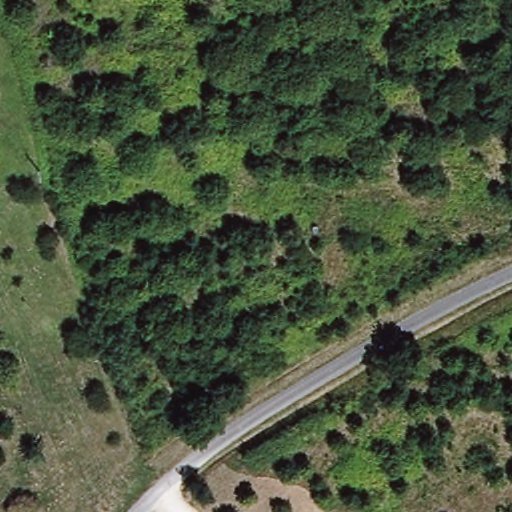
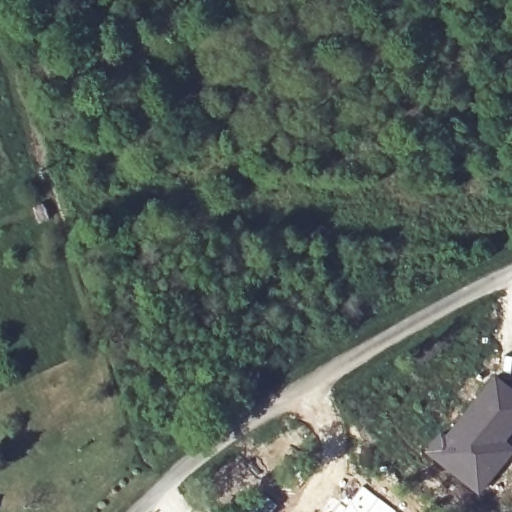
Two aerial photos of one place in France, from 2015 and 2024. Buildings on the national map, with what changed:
new [(443,430),(492,372),(512,388),(512,432),(506,440),(512,446),(512,454),(477,495),(420,449),(439,427),(443,430)]
new [(343,505),(361,484),(398,512),(336,512),(341,503),(343,505)]

